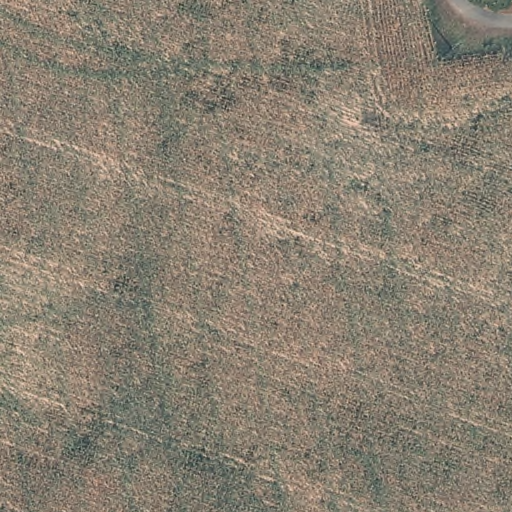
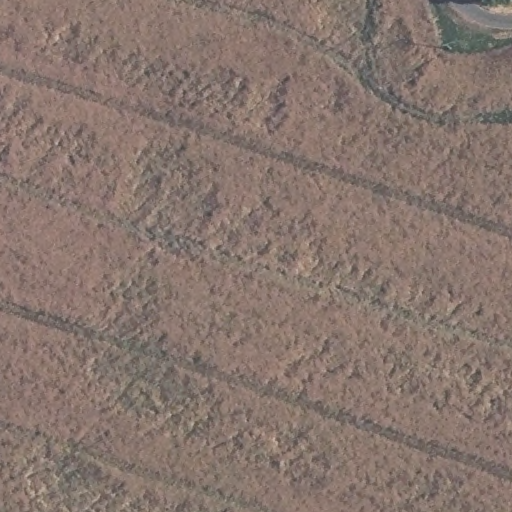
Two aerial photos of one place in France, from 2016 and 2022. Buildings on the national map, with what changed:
[]

